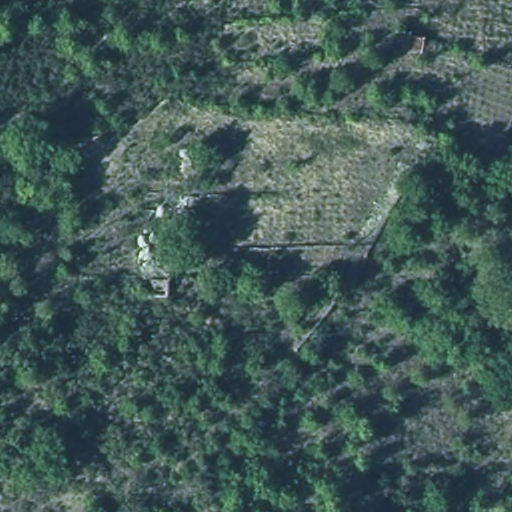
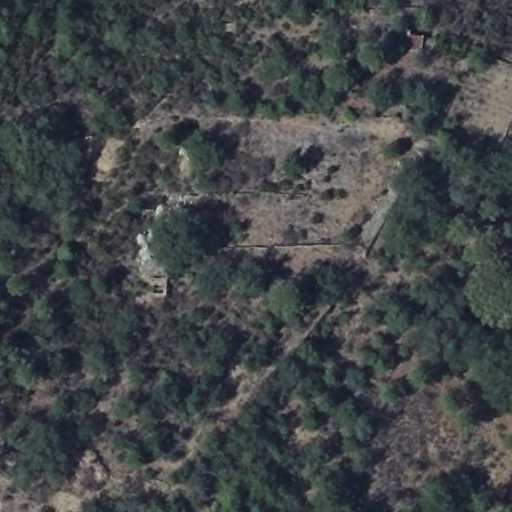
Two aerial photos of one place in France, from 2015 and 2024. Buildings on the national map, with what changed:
unchanged [(167,271),(167,285),(150,285),(150,273),(167,271)]

